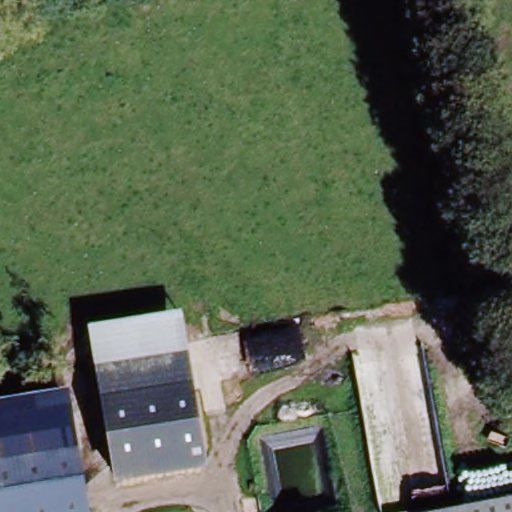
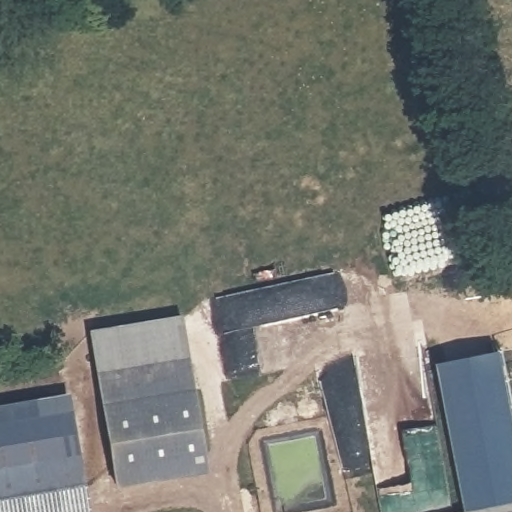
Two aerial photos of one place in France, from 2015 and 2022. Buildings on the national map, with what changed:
unchanged [(88,332),(181,316),(187,357),(95,376),(88,332)]
new [(495,355),(512,428),(512,505),(474,512),(463,512),(435,366),(495,355)]
unchanged [(112,492),(95,376),(187,357),(204,476),(112,492)]
unchanged [(65,395),(76,458),(0,471),(0,405),(65,395)]
unchanged [(76,458),(86,512),(0,512),(0,471),(76,458)]
unchanged [(512,505),(512,512),(474,512),(512,505)]

